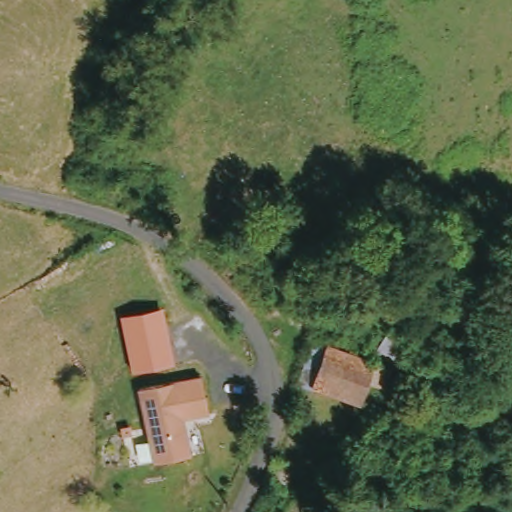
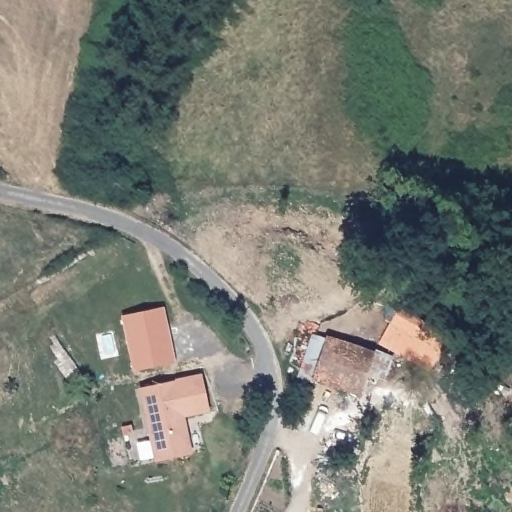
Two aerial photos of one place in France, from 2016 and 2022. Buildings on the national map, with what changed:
unchanged [(164,307),(175,363),(133,371),(121,315),(164,307)]
unchanged [(326,337),(378,352),(365,392),(314,376),(326,337)]
unchanged [(204,375),(211,409),(182,418),(184,426),(187,426),(195,456),(160,464),(142,391),(204,375)]

